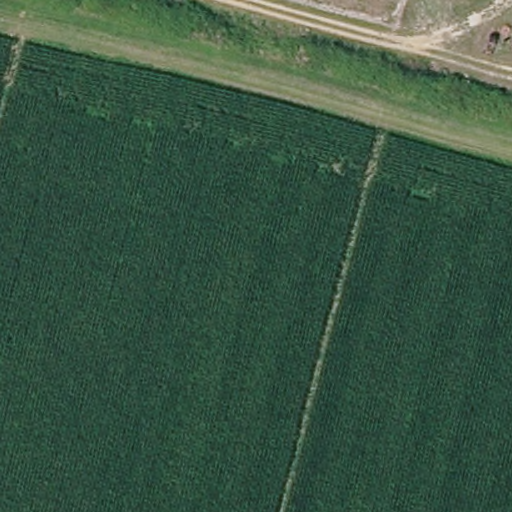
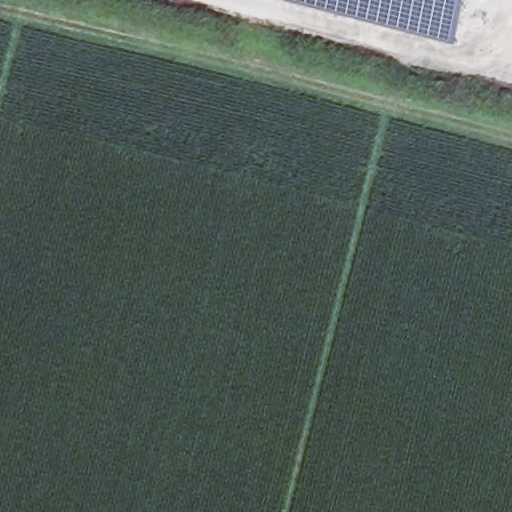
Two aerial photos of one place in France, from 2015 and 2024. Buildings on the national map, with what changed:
new [(457,45),(288,0),(469,0),(457,45)]

